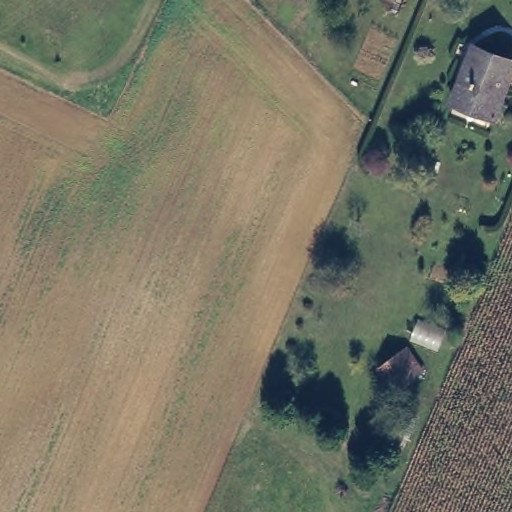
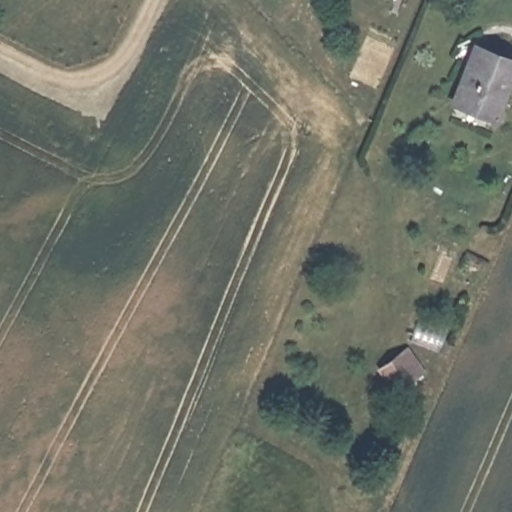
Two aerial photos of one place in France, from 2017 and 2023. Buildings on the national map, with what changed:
unchanged [(512,59),(512,68),(492,115),(452,99),(476,44),(512,59)]
unchanged [(422,379),(396,394),(377,373),(406,353),(422,379)]

